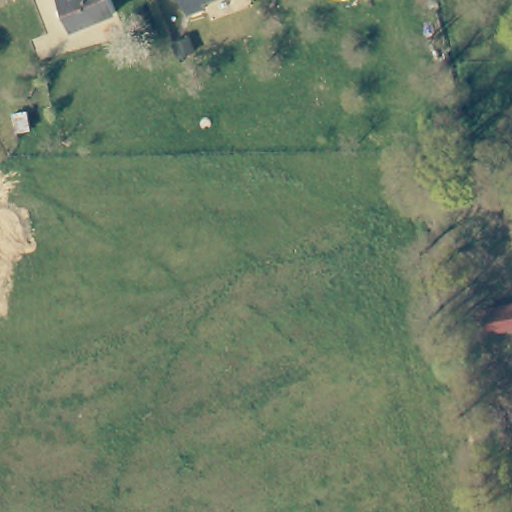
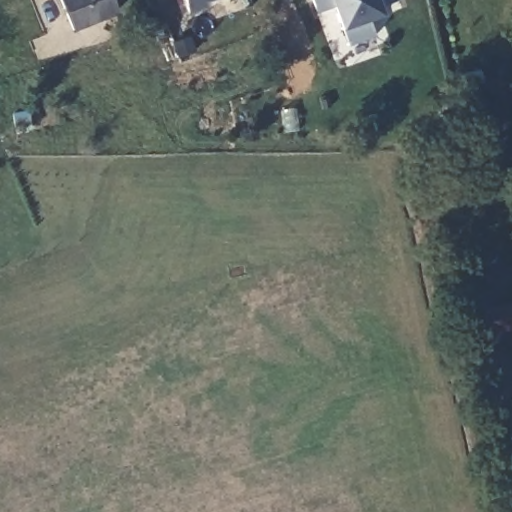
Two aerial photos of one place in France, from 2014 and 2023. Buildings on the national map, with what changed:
unchanged [(71,31),(59,0),(110,0),(115,13),(71,31)]
unchanged [(222,0),(202,7),(205,14),(188,20),(181,0),(222,0)]
unchanged [(222,0),(237,0),(228,3),(222,0)]
new [(384,17),(371,21),(376,38),(347,49),(341,29),(335,9),(316,15),(311,0),(399,0),(381,9),(384,17)]
unchanged [(190,43),(194,57),(178,63),(172,49),(190,43)]

